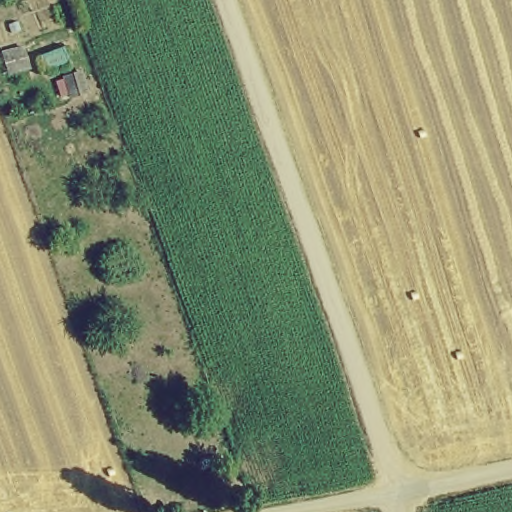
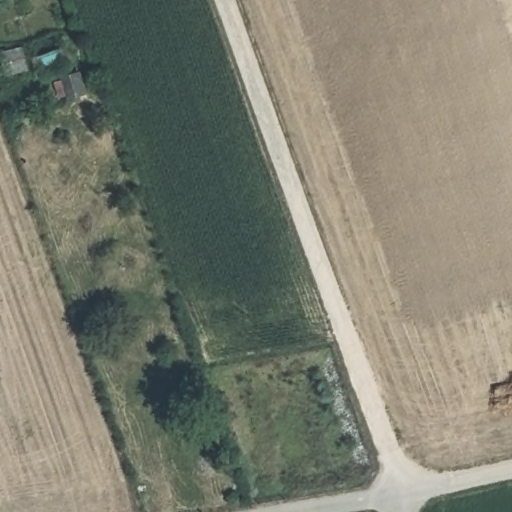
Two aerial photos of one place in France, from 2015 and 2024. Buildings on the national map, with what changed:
unchanged [(0,77),(0,54),(25,47),(31,69),(0,77)]

